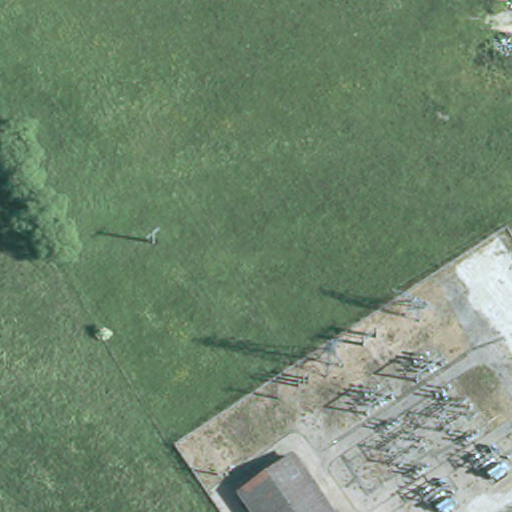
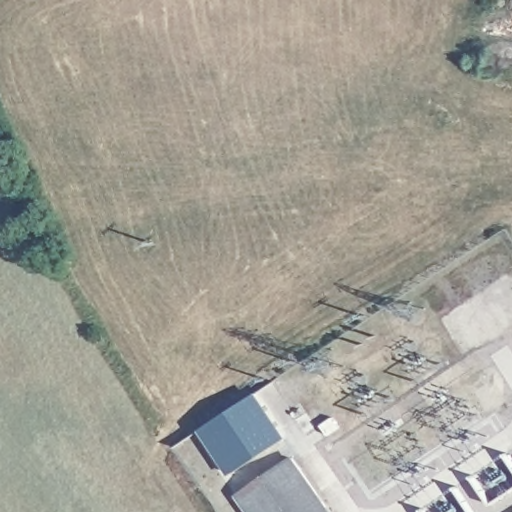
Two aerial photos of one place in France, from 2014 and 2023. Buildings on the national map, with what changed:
demolished [(512,325),(512,349),(501,332),(512,325)]
new [(250,396),(280,441),(230,474),(201,428),(250,396)]
unchanged [(329,512),(250,512),(236,492),(290,455),(329,512)]

